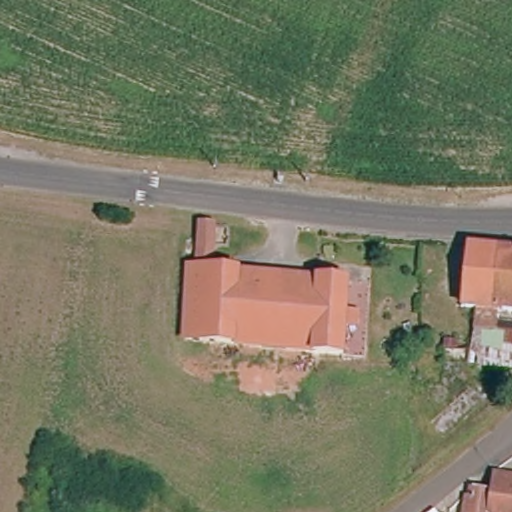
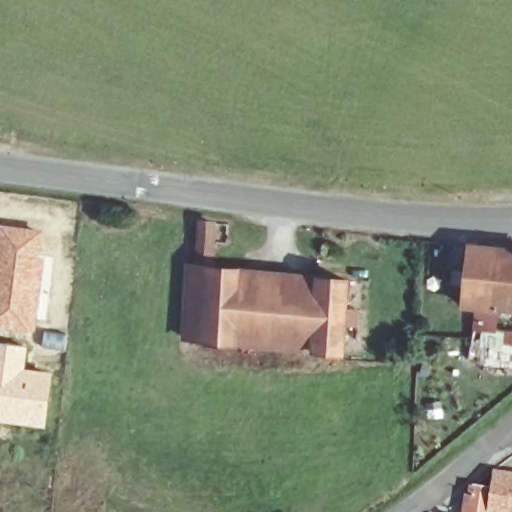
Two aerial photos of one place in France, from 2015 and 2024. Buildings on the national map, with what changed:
unchanged [(185,266),(194,267),(194,238),(195,219),(214,223),(212,240),(209,267),(369,280),(366,356),(180,344),(185,266)]
new [(42,279),(34,333),(0,327),(0,224),(44,230),(42,279)]
unchanged [(498,320),(497,333),(512,333),(512,375),(471,374),(469,395),(440,394),(441,350),(470,351),(472,316),(458,316),(469,245),(512,251),(512,321),(498,320)]
new [(25,367),(53,371),(45,429),(0,422),(0,342),(27,346),(25,367)]
unchanged [(493,485),(512,489),(512,512),(464,512),(464,504),(493,485)]

